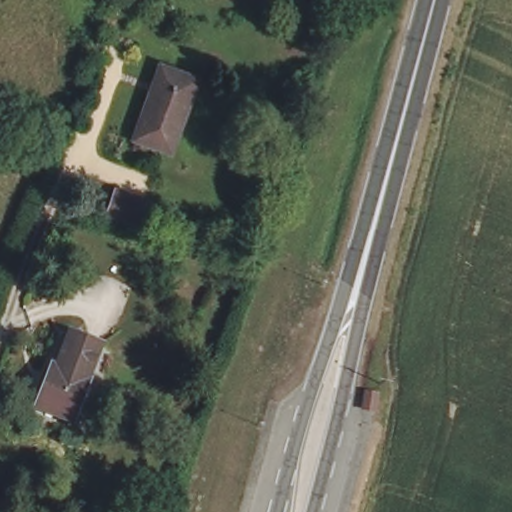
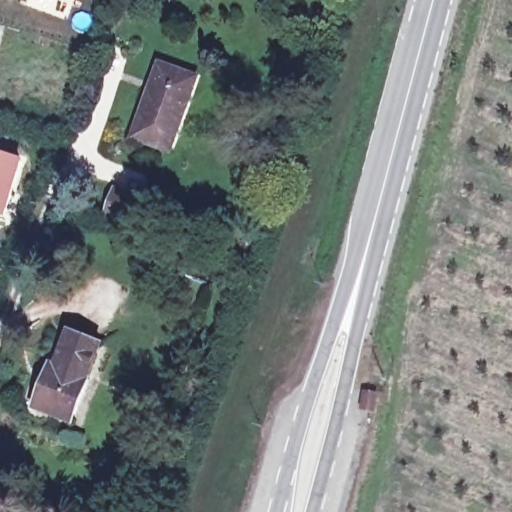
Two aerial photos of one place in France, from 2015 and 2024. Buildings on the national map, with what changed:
unchanged [(168,155),(130,142),(156,66),(195,81),(168,155)]
new [(24,157),(5,216),(0,214),(0,150),(24,157)]
unchanged [(138,231),(100,217),(111,184),(150,198),(138,231)]
unchanged [(70,334),(100,345),(87,381),(90,381),(75,423),(37,410),(52,365),(58,368),(70,334)]

